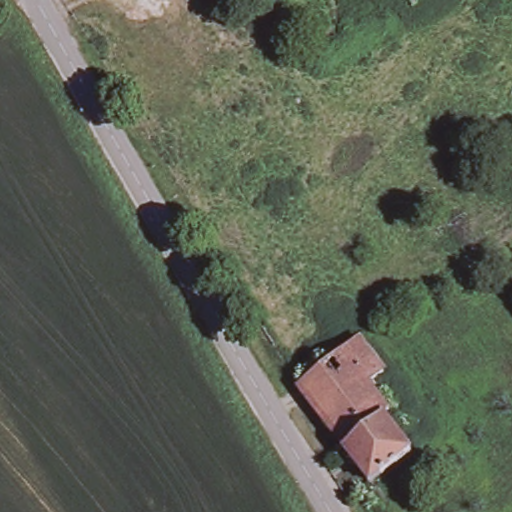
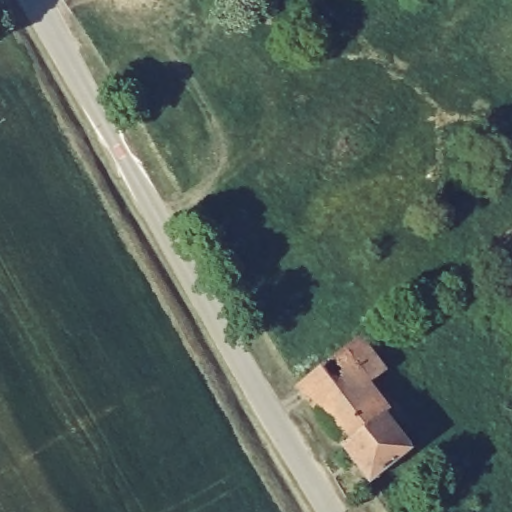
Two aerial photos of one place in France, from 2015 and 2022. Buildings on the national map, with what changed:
unchanged [(358,335),(383,369),(369,380),(323,416),(297,382),(358,335)]
unchanged [(369,380),(390,409),(384,413),(344,445),(323,416),(369,380)]
unchanged [(384,413),(413,450),(369,480),(344,445),(384,413)]

